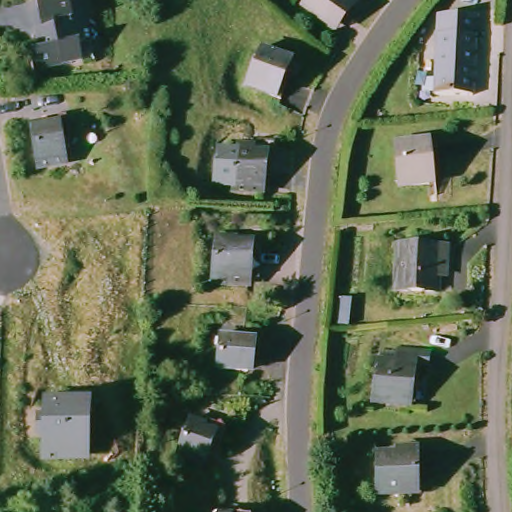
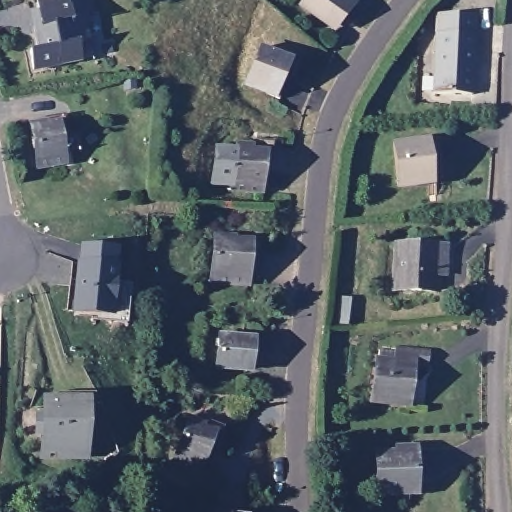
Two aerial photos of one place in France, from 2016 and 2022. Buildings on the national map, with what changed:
unchanged [(42,0),(59,0),(60,3),(74,0),(81,0),(85,18),(76,20),(83,48),(66,51),(70,66),(24,76),(18,56),(28,54),(26,46),(20,19),(30,17),(28,3),(42,0)]
unchanged [(329,35),(319,25),(296,6),(300,0),(341,0),(348,6),(339,16),(343,19),(329,35)]
unchanged [(472,48),(472,108),(430,108),(431,47),(431,27),(438,28),(473,28),(472,48)]
unchanged [(244,87),(258,53),(281,62),(289,65),(281,84),(275,99),(244,87)]
unchanged [(44,139),(58,137),(62,167),(38,171),(31,130),(43,129),(44,139)]
unchanged [(228,156),(229,149),(246,151),(244,160),(258,162),(252,195),(203,187),(208,153),(228,156)]
unchanged [(428,192),(399,196),(392,157),(422,153),(428,192)]
unchanged [(253,277),(245,277),(244,286),(206,285),(207,241),(226,241),(226,251),(243,251),(253,252),(253,277)]
unchanged [(443,246),(441,273),(434,272),(432,299),(389,296),(392,242),(443,246)]
new [(128,324),(114,319),(71,314),(79,246),(119,249),(118,275),(121,276),(120,282),(123,281),(131,286),(128,324)]
unchanged [(254,375),(222,374),(223,343),(256,344),(254,375)]
unchanged [(401,354),(431,358),(428,378),(417,376),(412,415),(376,410),(382,370),(398,372),(401,354)]
unchanged [(90,456),(49,456),(50,407),(90,409),(90,456)]
unchanged [(208,428),(218,434),(206,463),(186,452),(199,415),(211,421),(208,428)]
unchanged [(423,500),(386,503),(383,460),(420,457),(423,500)]

